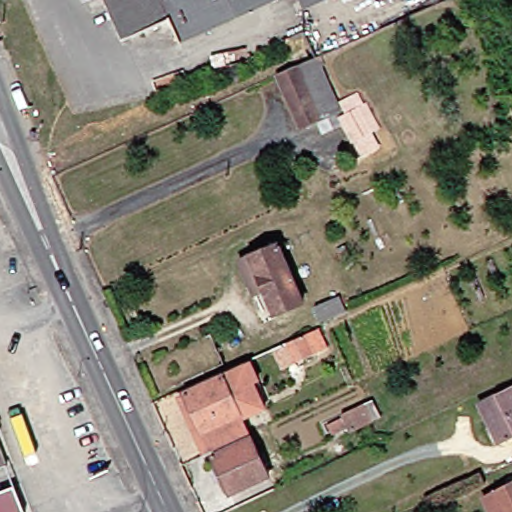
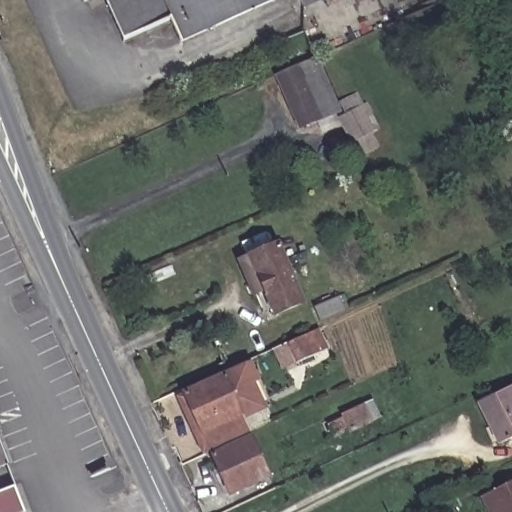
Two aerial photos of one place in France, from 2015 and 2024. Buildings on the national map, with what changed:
unchanged [(307,63),(333,109),(299,128),(274,79),(307,63)]
unchanged [(342,114),(336,102),(353,94),(385,150),(371,158),(367,154),(359,159),(335,118),(342,114)]
unchanged [(340,246),(343,253),(335,257),(331,249),(340,246)]
unchanged [(270,247),(297,304),(272,315),(261,292),(250,295),(236,263),(270,247)]
unchanged [(335,295),(340,311),(317,322),(310,307),(335,295)]
unchanged [(320,331),(323,339),(310,346),(315,357),(298,364),(289,345),(320,331)]
unchanged [(254,364),(262,383),(256,386),(267,411),(244,423),(222,378),(254,364)]
unchanged [(180,413),(191,408),(186,395),(221,379),(247,435),(211,453),(200,458),(180,413)]
unchanged [(477,405),(512,387),(512,437),(495,445),(477,405)]
unchanged [(344,423),(332,429),(327,417),(339,412),(344,423)]
unchanged [(271,482),(236,499),(217,462),(254,444),(271,482)]
unchanged [(5,477),(0,479),(0,459),(5,477)]
unchanged [(482,499),(494,494),(512,485),(512,512),(488,512),(482,499)]
unchanged [(12,497),(17,512),(0,512),(0,500),(12,497)]

